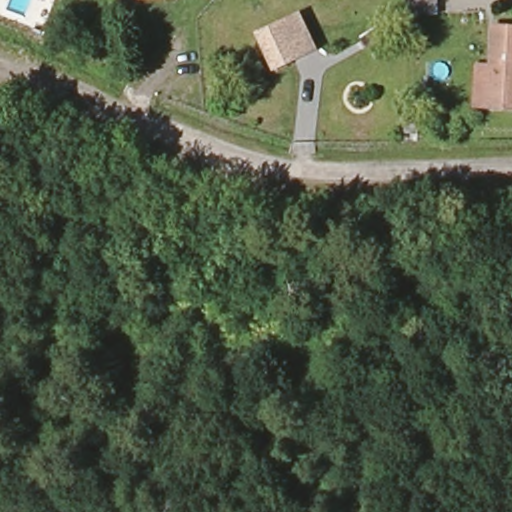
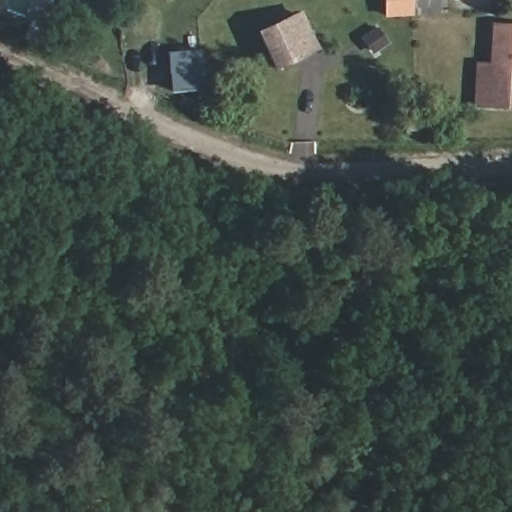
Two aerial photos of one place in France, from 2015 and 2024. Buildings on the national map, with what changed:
demolished [(158,0),(167,0),(159,1),(158,0)]
unchanged [(413,17),(411,0),(441,0),(442,14),(413,17)]
unchanged [(297,60),(279,69),(262,35),(300,16),(311,39),(317,50),(297,60)]
unchanged [(491,75),(495,29),(512,29),(512,104),(490,103),(472,101),(474,72),(491,75)]
new [(199,92),(166,93),(165,52),(197,51),(199,92)]

